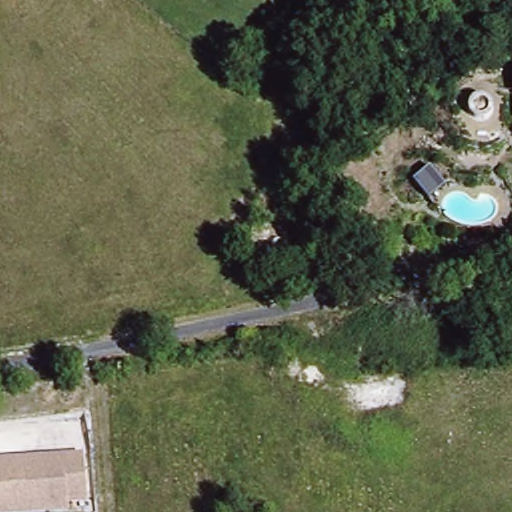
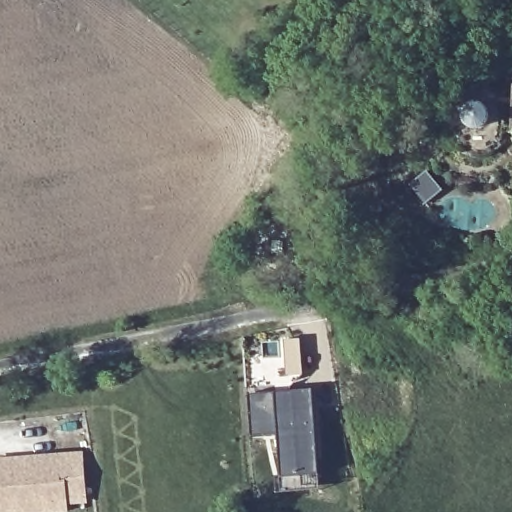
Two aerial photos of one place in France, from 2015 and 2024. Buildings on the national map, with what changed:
unchanged [(490,110),(491,119),(485,127),(478,127),(470,120),(470,114),(476,106),(482,106),(490,110)]
unchanged [(415,184),(431,171),(444,187),(428,201),(415,184)]
new [(277,435),(252,437),(249,395),(313,389),(321,490),(282,493),(277,435)]
unchanged [(62,449),(82,448),(87,494),(68,496),(69,504),(50,506),(0,511),(0,456),(29,453),(62,449)]

